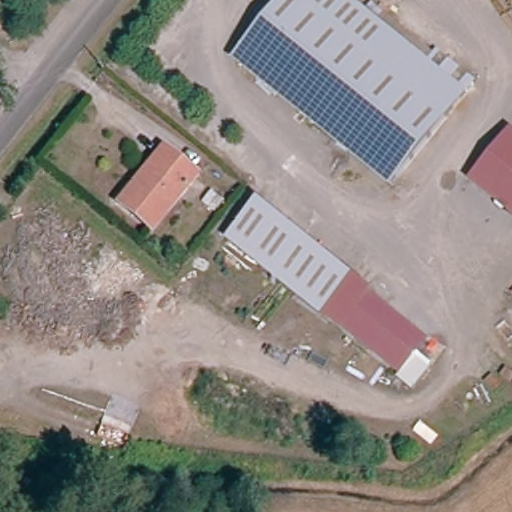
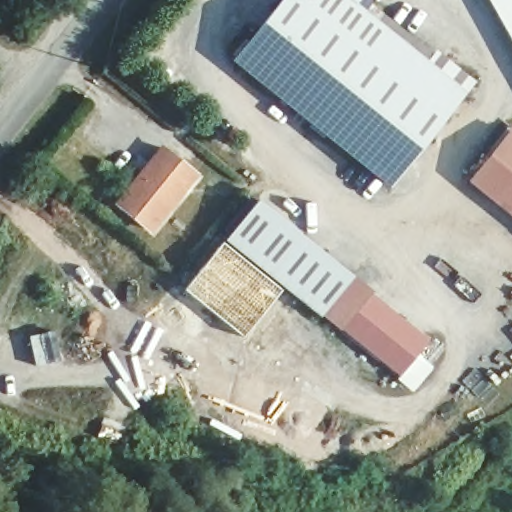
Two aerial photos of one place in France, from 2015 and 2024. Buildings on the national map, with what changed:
unchanged [(283,0),(339,0),(421,67),(348,158),(231,64),(283,0)]
new [(512,0),(512,45),(486,0),(512,0)]
unchanged [(460,98),(386,190),(348,158),(421,67),(460,98)]
unchanged [(512,214),(470,181),(511,130),(512,130),(512,214)]
unchanged [(118,208),(164,151),(198,179),(151,236),(118,208)]
unchanged [(357,271),(354,274),(327,307),(325,310),(277,272),(232,235),(231,234),(262,195),(357,271)]
demolished [(277,272),(259,293),(214,257),(232,235),(277,272)]
new [(242,337),(182,290),(222,242),(282,289),(242,337)]
unchanged [(354,274),(431,336),(404,369),(327,307),(354,274)]

